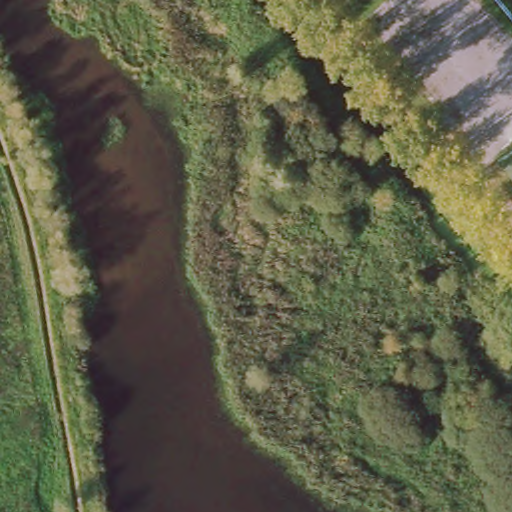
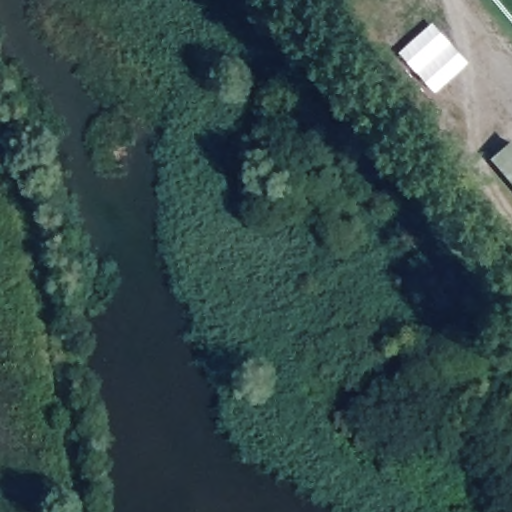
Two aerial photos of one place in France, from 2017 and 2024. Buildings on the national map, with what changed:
new [(400,53),(433,22),(470,63),(437,94),(400,53)]
unchanged [(494,155),(512,142),(512,176),(494,155)]

